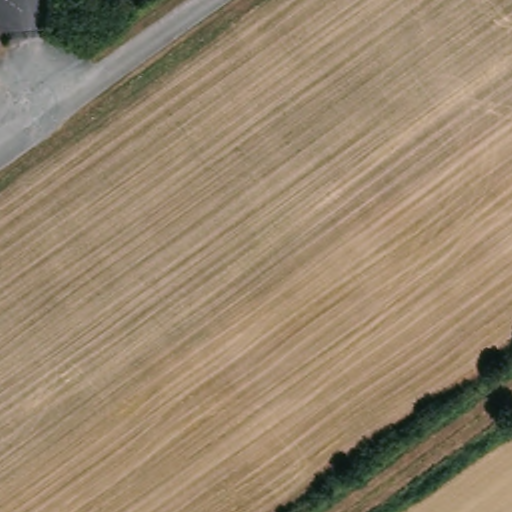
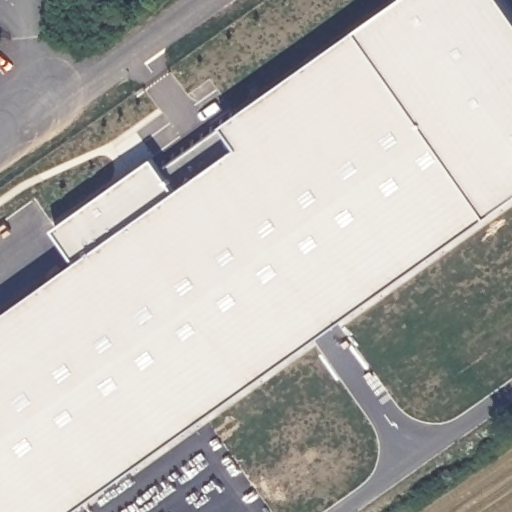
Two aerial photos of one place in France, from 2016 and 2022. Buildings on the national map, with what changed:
new [(77,261),(54,228),(154,157),(162,168),(398,0),(511,0),(512,1),(512,199),(72,512),(0,512),(0,316),(77,261)]

